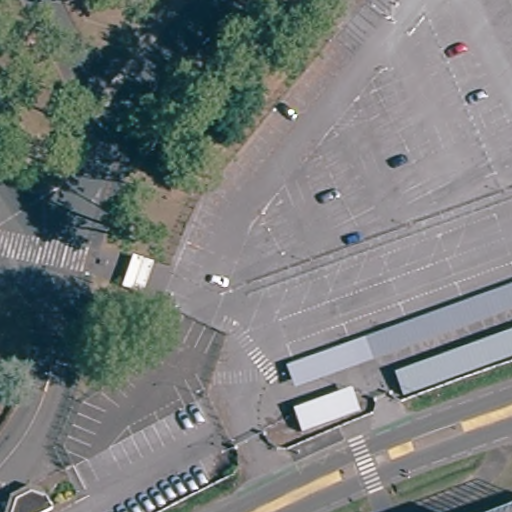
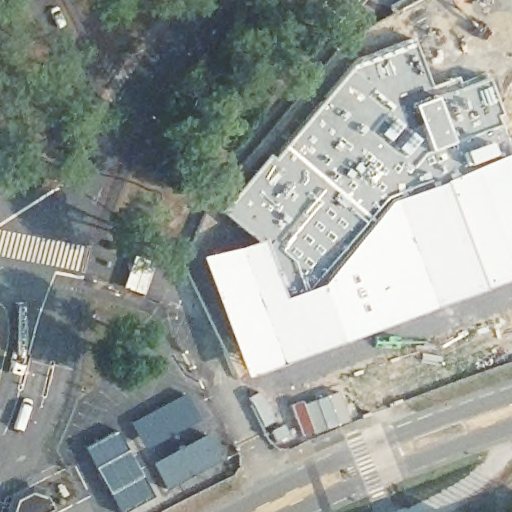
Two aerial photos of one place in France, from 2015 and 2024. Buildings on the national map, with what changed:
new [(267,155),(271,158),(282,146),(352,65),(412,42),(416,58),(401,61),(400,58),(388,61),(394,77),(422,70),(431,91),(421,95),(422,98),(407,105),(427,153),(452,145),(470,137),(472,144),(486,140),(493,157),(436,182),(387,199),(356,234),(352,239),(342,251),(335,260),(315,283),(281,297),(258,240),(252,242),(248,237),(217,211),(267,155)]
new [(443,87),(442,83),(456,78),(457,84),(485,75),(500,114),(496,116),(498,126),(475,136),(470,137),(452,145),(432,94),(443,87)]
new [(422,98),(432,94),(452,145),(427,153),(407,105),(422,98)]
new [(258,240),(281,297),(315,283),(335,260),(342,251),(352,239),(356,234),(387,199),(436,182),(493,157),(512,151),(512,277),(412,316),(242,378),(197,256),(252,242),(258,240)]
demolished [(368,334),(512,283),(512,307),(375,355),(368,334)]
unchanged [(512,354),(407,392),(397,370),(512,330),(512,354)]
demolished [(375,355),(292,385),(285,363),(368,334),(375,355)]
unchanged [(362,410),(302,433),(294,412),(352,390),(362,410)]
new [(122,512),(118,512),(92,468),(82,448),(115,430),(126,450),(150,496),(122,512)]
new [(206,433),(220,461),(167,488),(151,462),(206,433)]
unchanged [(43,512),(7,512),(12,497),(27,487),(45,491),(51,509),(43,512)]

